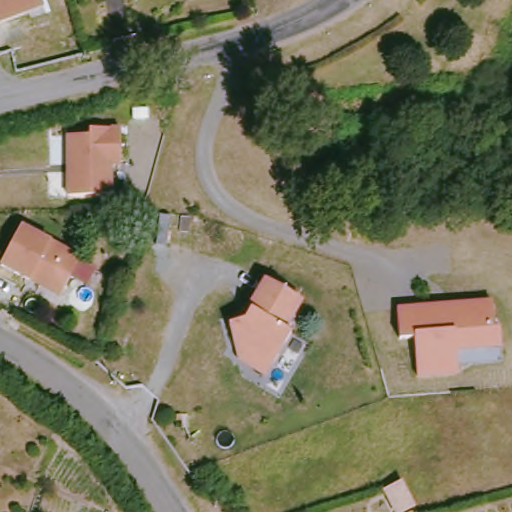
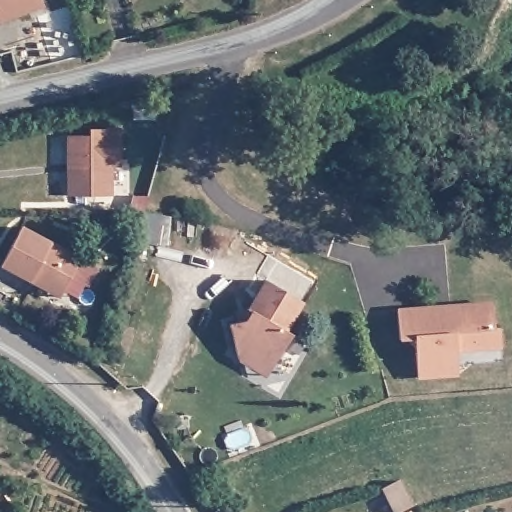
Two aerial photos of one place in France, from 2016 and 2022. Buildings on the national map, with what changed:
unchanged [(0,24),(0,0),(40,0),(43,9),(0,24)]
unchanged [(71,136),(93,136),(93,130),(124,131),(123,167),(114,167),(113,197),(70,196),(71,136)]
unchanged [(31,277),(1,262),(20,225),(80,255),(65,287),(61,293),(31,277)]
unchanged [(282,325),(288,329),(272,360),(253,350),(235,355),(227,323),(242,318),(245,311),(245,307),(262,277),(298,297),(282,325)]
unchanged [(494,301),(497,328),(502,328),(504,350),(459,352),(460,377),(420,378),(417,337),(402,338),(398,309),(494,301)]
unchanged [(406,479),(420,505),(402,512),(396,512),(385,486),(406,479)]

